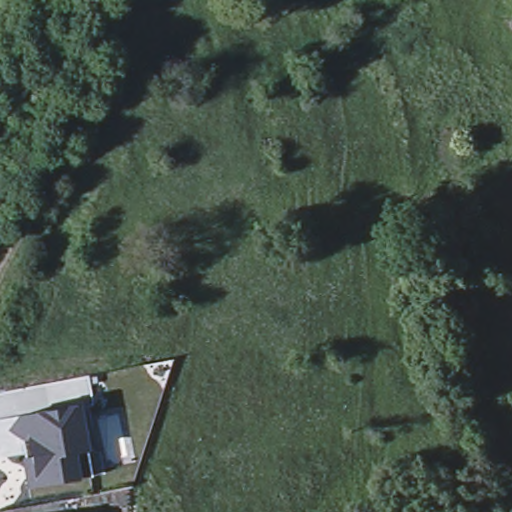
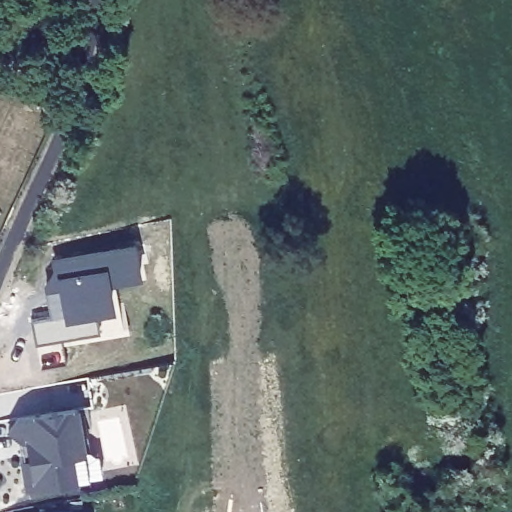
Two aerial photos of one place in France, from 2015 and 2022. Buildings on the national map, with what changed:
new [(139,247),(147,284),(110,289),(115,319),(100,322),(99,336),(37,349),(32,324),(52,324),(45,294),(60,291),(52,260),(139,247)]
unchanged [(22,441),(7,431),(15,416),(78,405),(83,435),(87,435),(92,454),(98,454),(102,472),(87,473),(78,476),(28,487),(22,441)]

